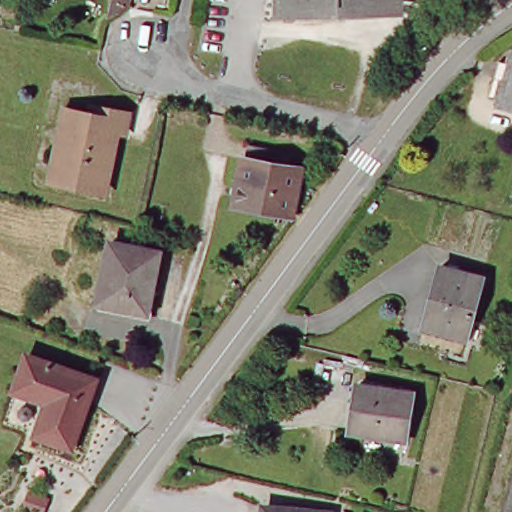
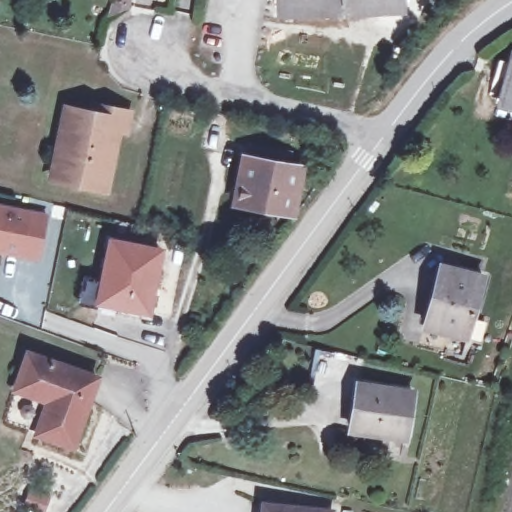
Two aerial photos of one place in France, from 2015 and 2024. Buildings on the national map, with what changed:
unchanged [(287,4),(287,0),(400,0),(365,1),(365,9),(322,10),(322,3),(287,4)]
unchanged [(512,69),(512,106),(502,102),(512,69)]
unchanged [(56,140),(62,107),(89,113),(91,103),(127,110),(123,129),(115,128),(103,188),(60,179),(49,177),(56,140)]
unchanged [(235,204),(248,145),(290,153),(286,168),(299,171),(290,214),(235,204)]
new [(47,219),(38,259),(0,251),(0,209),(47,219)]
unchanged [(161,248),(147,306),(100,294),(113,237),(161,248)]
unchanged [(481,275),(466,338),(426,328),(440,266),(481,275)]
unchanged [(38,433),(50,398),(15,386),(26,352),(97,376),(75,445),(38,433)]
unchanged [(357,383),(410,390),(405,437),(351,430),(357,383)]
unchanged [(329,512),(264,512),(265,502),(329,509),(329,512)]

